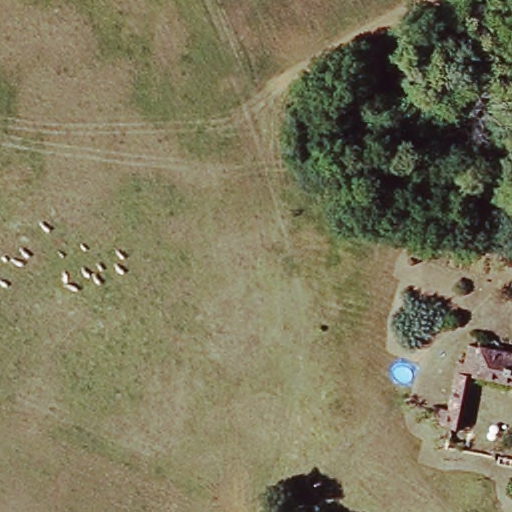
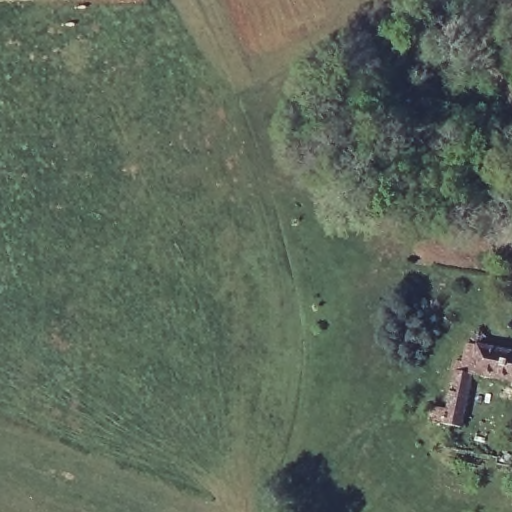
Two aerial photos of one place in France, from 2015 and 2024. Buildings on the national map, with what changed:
unchanged [(447,448),(450,428),(432,425),(434,402),(447,404),(457,359),(462,361),(466,342),(512,350),(512,378),(479,372),(466,431),(463,450),(447,448)]

